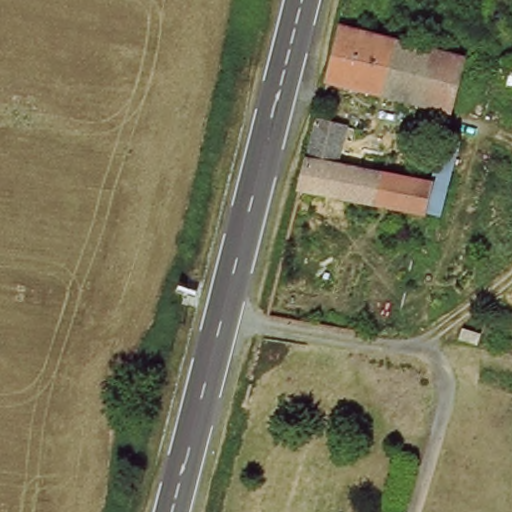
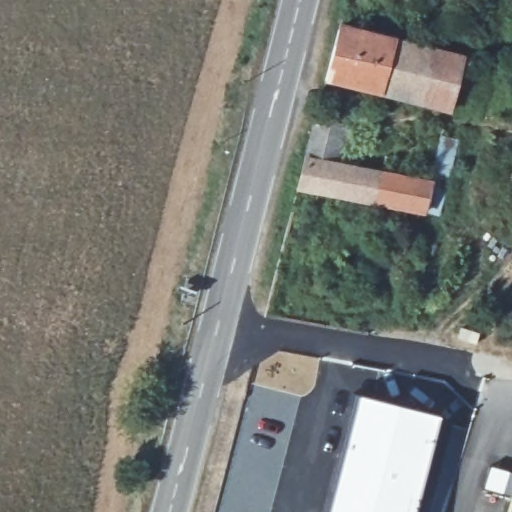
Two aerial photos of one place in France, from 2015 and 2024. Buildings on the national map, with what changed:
unchanged [(327,74),(341,19),(398,34),(466,51),(452,107),(327,74)]
unchanged [(431,212),(394,202),(304,182),(322,112),(341,116),(332,157),(438,181),(431,212)]
new [(438,415),(420,484),(413,512),(324,512),(355,393),(438,415)]
new [(239,430),(243,431),(242,436),(262,440),(264,433),(289,440),(271,512),(214,512),(218,495),(239,430)]
new [(490,467),(512,472),(512,497),(483,488),(490,467)]
new [(508,512),(512,499),(512,512),(508,512)]

